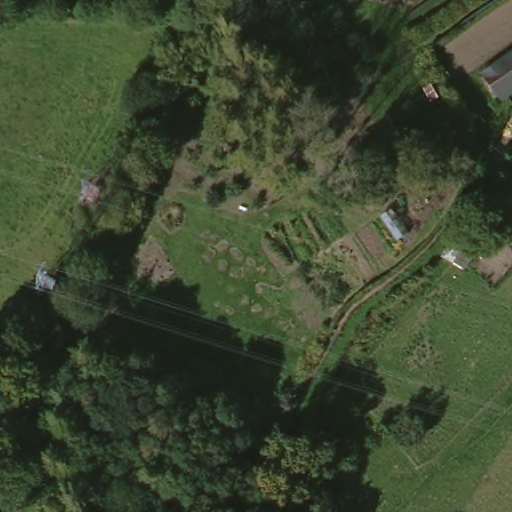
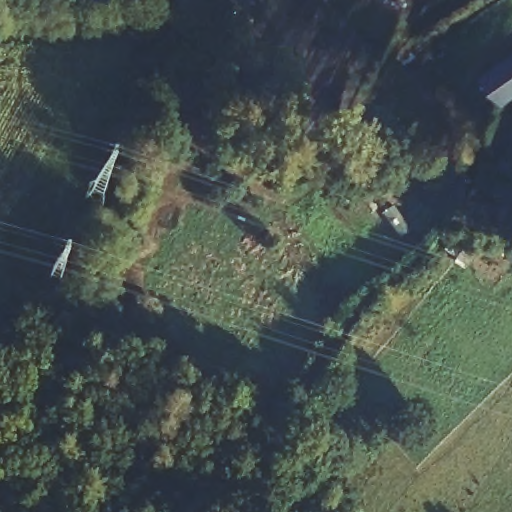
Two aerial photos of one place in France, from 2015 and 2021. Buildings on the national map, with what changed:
unchanged [(512,96),(506,99),(486,72),(512,54),(512,96)]

